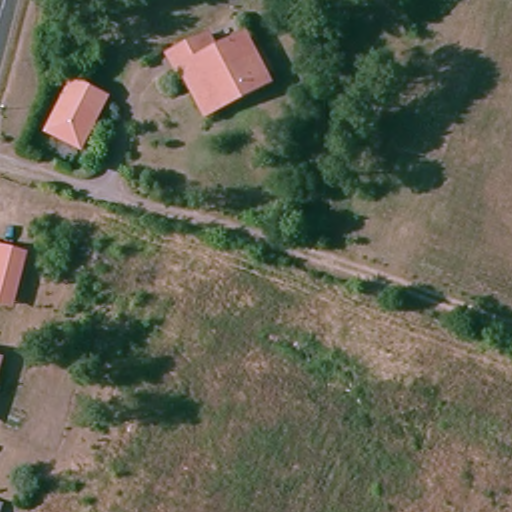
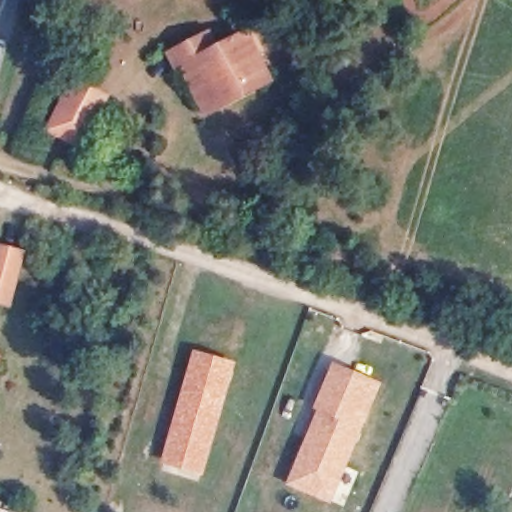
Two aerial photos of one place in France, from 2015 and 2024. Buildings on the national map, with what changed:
unchanged [(184,67),(180,70),(171,54),(208,34),(216,49),(245,33),(267,73),(271,80),(209,113),(184,67)]
unchanged [(44,132),(70,76),(111,93),(83,148),(44,132)]
demolished [(36,219),(19,210),(25,199),(32,203),(42,209),(36,219)]
unchanged [(20,254),(10,288),(6,304),(0,302),(0,248),(20,254)]
new [(192,348),(236,362),(202,476),(158,463),(192,348)]
new [(381,382),(330,502),(286,483),(317,410),(312,407),(332,362),(381,382)]
unchanged [(1,506),(0,509),(0,505),(1,506)]

